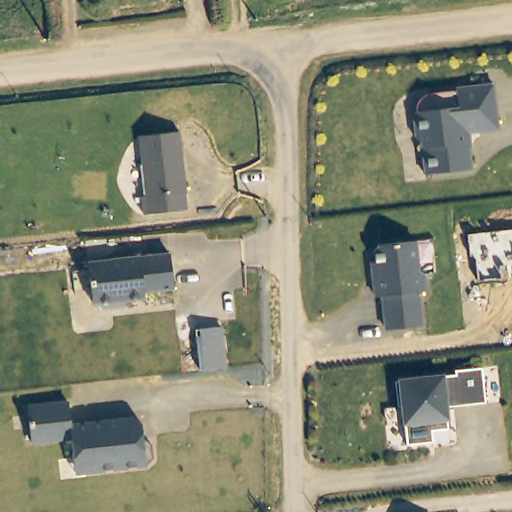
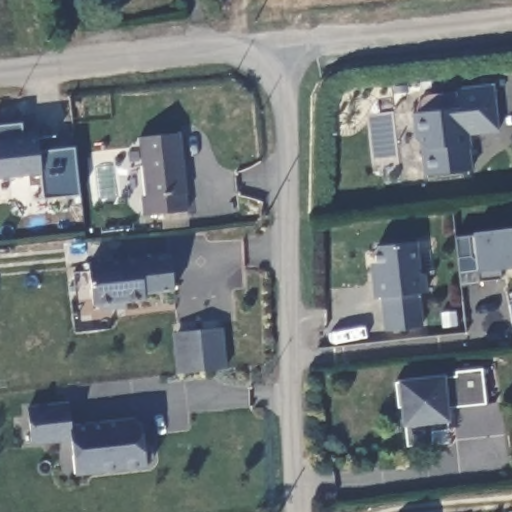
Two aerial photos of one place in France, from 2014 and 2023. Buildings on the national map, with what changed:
unchanged [(482,135),(473,136),(465,137),(466,146),(472,150),(474,171),(474,172),(428,177),(425,156),(430,150),(419,141),(416,115),(419,115),(419,114),(419,111),(419,110),(420,109),(420,107),(421,105),(421,104),(423,102),(424,101),(425,100),(427,99),(428,98),(429,97),(430,97),(432,97),(433,96),(434,96),(436,96),(459,93),(459,91),(473,89),(496,87),(501,132),(482,135)]
new [(22,137),(37,136),(38,151),(74,147),(79,196),(42,199),(39,174),(0,177),(0,125),(21,123),(22,137)]
unchanged [(178,131),(184,191),(183,192),(185,208),(141,213),(139,195),(143,195),(136,135),(178,131)]
unchanged [(472,235),(471,232),(512,227),(512,268),(499,269),(499,278),(477,281),(476,272),(474,257),(456,258),(454,237),(472,235)]
unchanged [(389,288),(393,283),(389,258),(393,253),(426,248),(431,277),(435,282),(438,299),(430,300),(435,333),(401,339),(395,305),(392,305),(389,288)]
unchanged [(86,262),(168,253),(171,287),(142,290),(142,296),(114,299),(109,306),(98,307),(92,302),(91,302),(86,262)]
unchanged [(222,327),(226,368),(177,373),(172,333),(222,327)]
unchanged [(447,428),(431,431),(432,442),(406,446),(401,406),(397,407),(393,382),(454,374),(453,370),(473,367),(480,367),(484,402),(474,402),(444,407),(447,428)]
unchanged [(71,457),(69,437),(29,442),(25,406),(66,401),(69,424),(133,417),(139,422),(141,437),(149,443),(150,457),(143,464),(82,471),(72,472),(71,457)]

